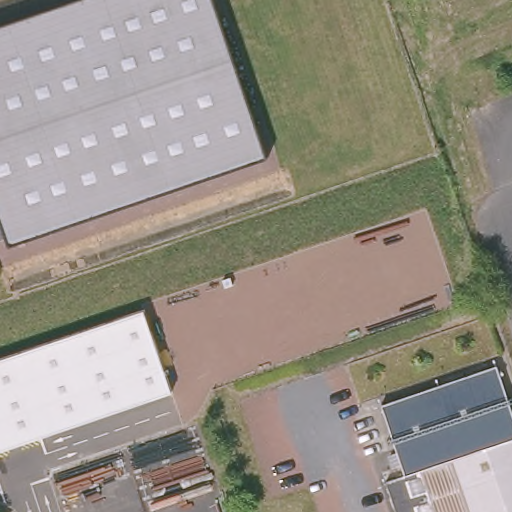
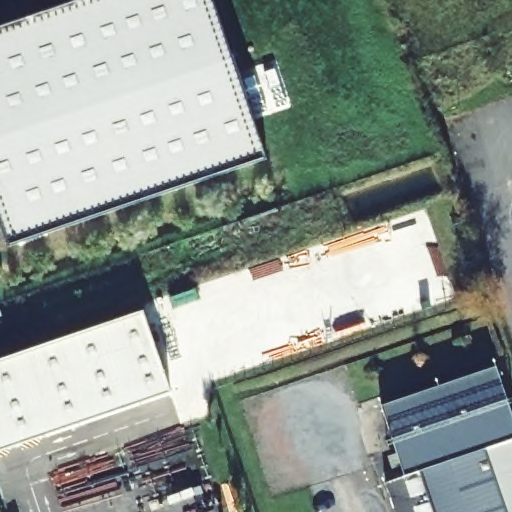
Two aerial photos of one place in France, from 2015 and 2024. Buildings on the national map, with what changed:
unchanged [(77,0),(212,0),(267,158),(8,245),(0,222),(0,26),(77,0)]
unchanged [(143,310),(171,393),(0,451),(0,359),(143,310)]
unchanged [(384,477),(404,471),(380,402),(493,363),(512,419),(512,512),(394,512),(384,477)]

